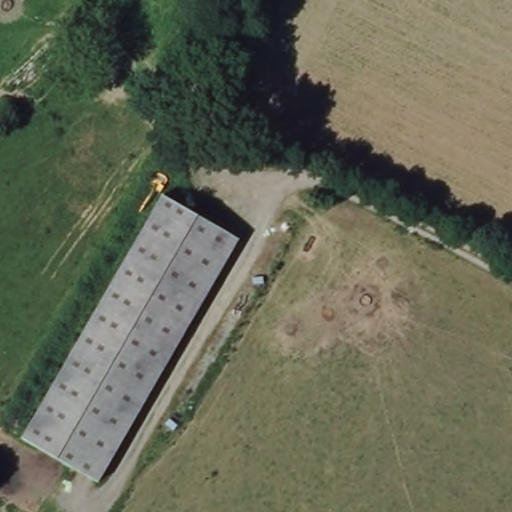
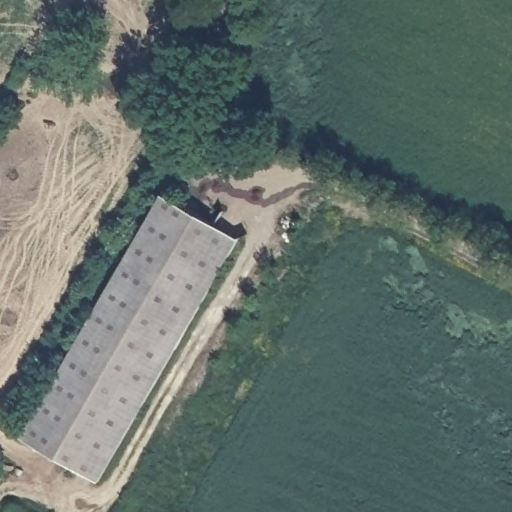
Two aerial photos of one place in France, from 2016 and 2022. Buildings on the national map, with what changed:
unchanged [(160,194),(239,241),(92,488),(14,440),(160,194)]

